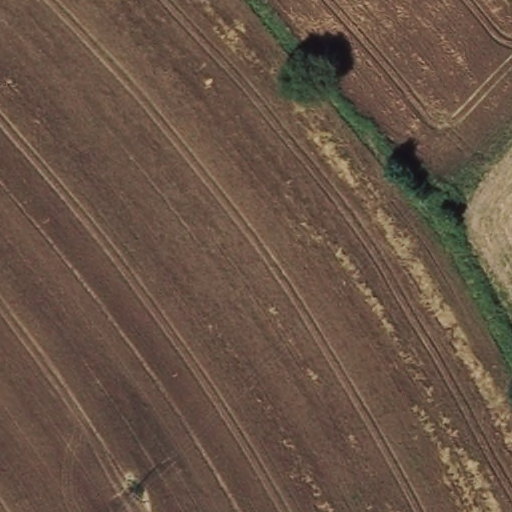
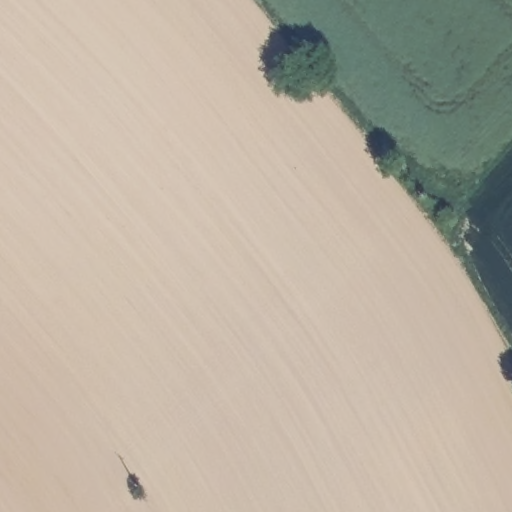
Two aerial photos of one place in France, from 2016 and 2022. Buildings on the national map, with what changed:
[]

